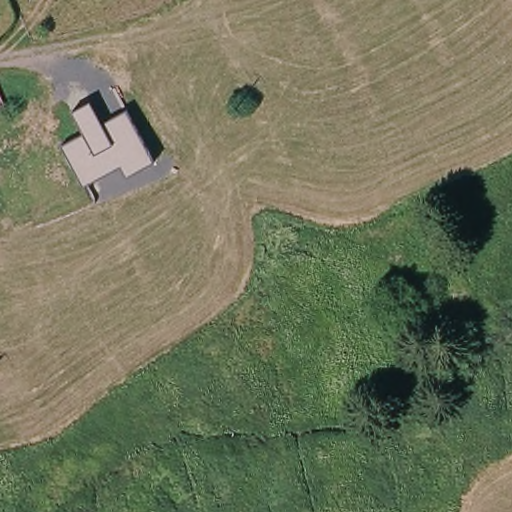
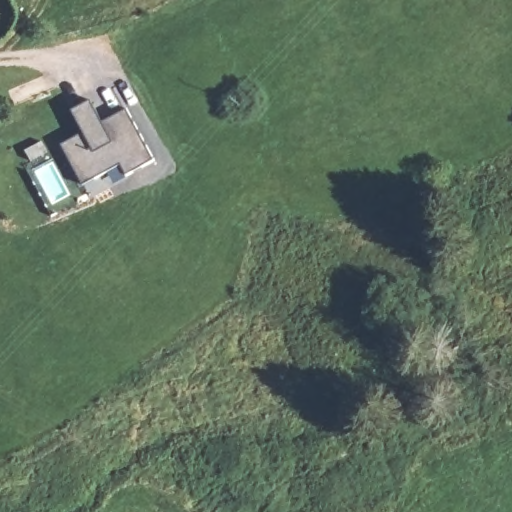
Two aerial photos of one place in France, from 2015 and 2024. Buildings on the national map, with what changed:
unchanged [(128,174),(121,164),(84,184),(63,144),(85,132),(74,110),(91,100),(103,121),(128,109),(154,159),(128,174)]

